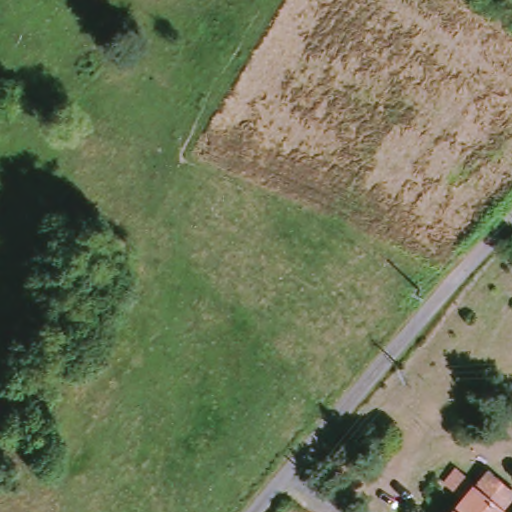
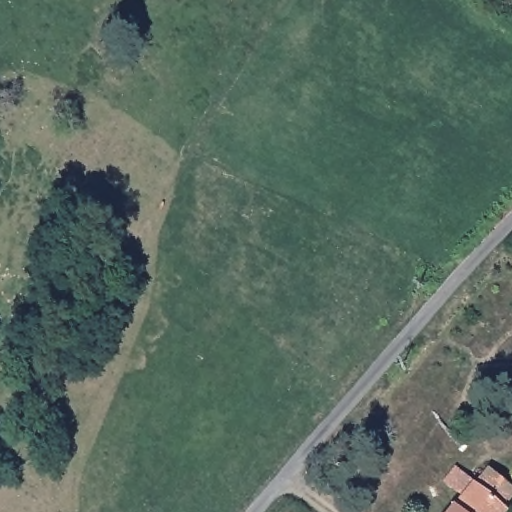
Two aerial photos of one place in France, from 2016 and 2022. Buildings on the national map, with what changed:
unchanged [(465,468),(483,483),(496,468),(512,482),(512,503),(509,507),(512,510),(512,512),(459,512),(470,498),(452,482),(465,468)]

